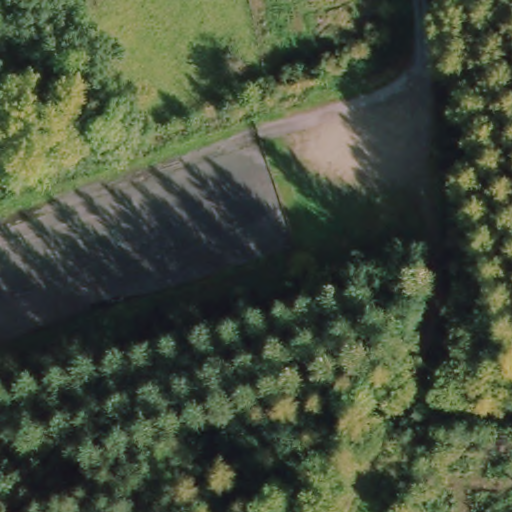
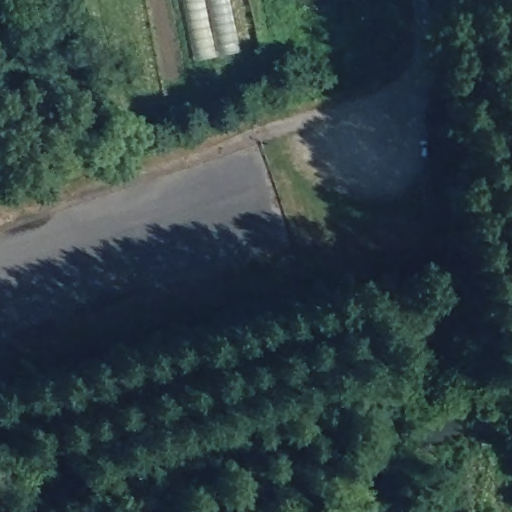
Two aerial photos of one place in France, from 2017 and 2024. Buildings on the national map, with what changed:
new [(179,0),(227,0),(237,53),(191,61),(179,0)]

